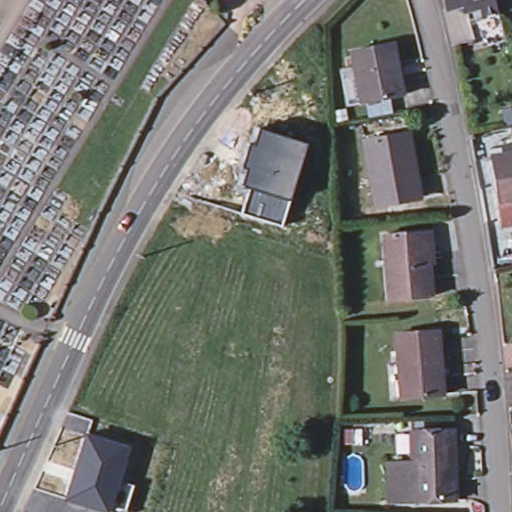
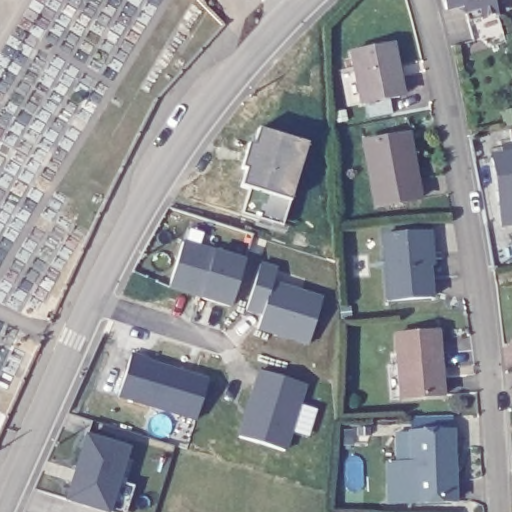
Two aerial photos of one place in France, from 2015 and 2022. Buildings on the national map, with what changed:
unchanged [(491,0),(495,16),(466,23),(462,8),(445,11),(443,0),(491,0)]
unchanged [(350,49),(392,40),(398,72),(395,73),(398,93),(361,101),(350,49)]
new [(290,202),(281,227),(240,215),(249,190),(241,187),(246,170),(240,168),(248,145),(253,146),(258,131),(307,144),(290,202)]
unchanged [(401,134),(407,133),(412,160),(418,197),(375,205),(365,141),(401,134)]
unchanged [(500,151),(512,150),(512,218),(510,218),(500,220),(498,201),(492,153),(500,151)]
unchanged [(383,234),(426,229),(428,252),(422,252),(422,257),(429,257),(432,295),(388,299),(383,234)]
new [(245,258),(230,308),(168,289),(184,240),(245,258)]
new [(260,260),(277,265),(272,279),(322,295),(308,340),(287,333),(288,331),(276,327),(275,330),(257,324),(262,310),(245,305),(260,260)]
new [(276,327),(288,331),(287,335),(275,331),(275,330),(276,327)]
unchanged [(402,362),(400,332),(442,329),(445,366),(443,367),(445,393),(403,396),(393,397),(392,363),(402,362)]
new [(195,422),(117,397),(132,352),(148,357),(147,360),(208,379),(195,422)]
new [(245,414),(247,415),(250,403),(248,403),(260,366),(305,380),(283,448),(238,434),(245,414)]
new [(243,413),(247,402),(250,403),(247,415),(245,414),(243,413)]
unchanged [(413,459),(412,430),(454,429),(456,467),(453,467),(454,500),(414,501),(413,459)]
unchanged [(110,509),(109,512),(102,512),(67,500),(85,435),(131,448),(120,481),(133,485),(125,512),(115,512),(110,509)]
unchanged [(389,501),(388,460),(413,459),(414,501),(389,501)]

